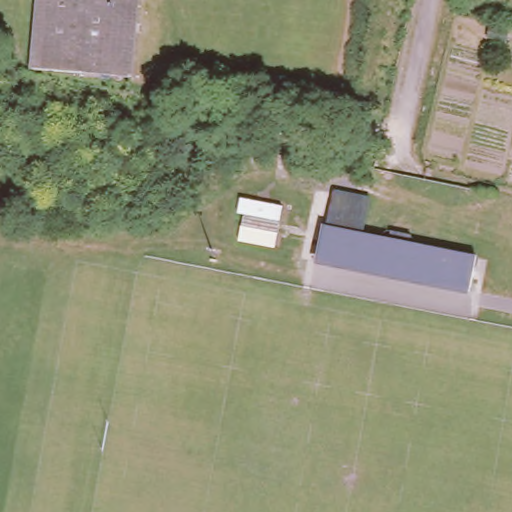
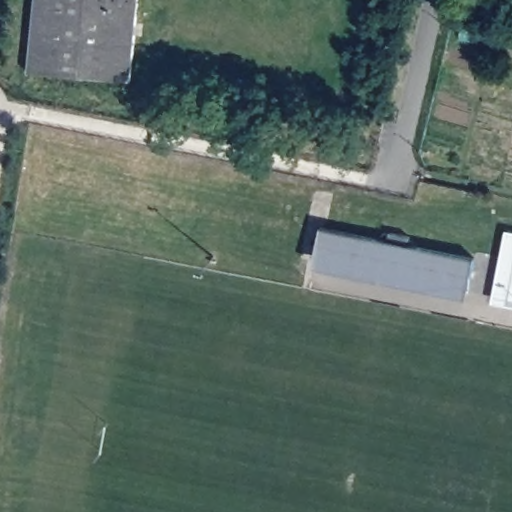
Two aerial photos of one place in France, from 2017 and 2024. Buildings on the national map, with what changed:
unchanged [(27,67),(31,0),(134,0),(129,77),(27,67)]
demolished [(404,232),(402,241),(382,237),(384,228),(404,232)]
new [(512,232),(512,301),(492,297),(506,231),(512,232)]
unchanged [(320,236),(356,242),(384,248),(385,239),(405,243),(404,252),(471,266),(464,300),(310,268),(316,235),(320,236)]

